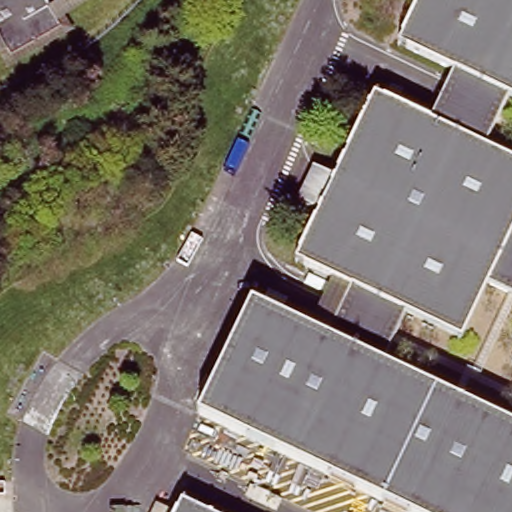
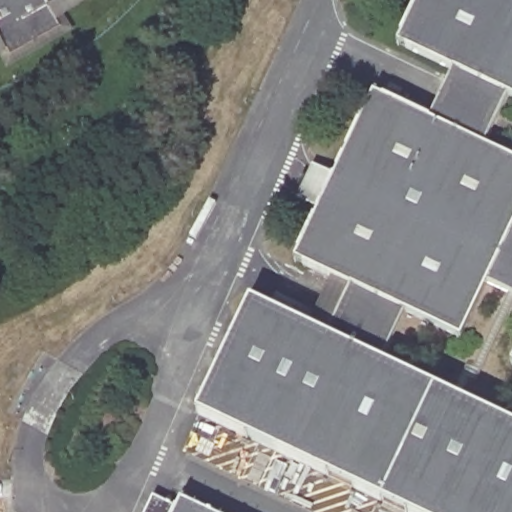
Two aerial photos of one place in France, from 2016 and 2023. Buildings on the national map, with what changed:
unchanged [(58,0),(47,8),(59,30),(11,61),(6,55),(0,58),(0,0),(58,0)]
unchanged [(249,301),(327,337),(349,286),(294,261),(371,96),(428,125),(453,69),(397,46),(418,0),(512,0),(512,95),(506,92),(479,146),(512,162),(512,224),(510,230),(512,231),(512,297),(484,283),(457,337),(403,311),(380,361),(512,423),(512,512),(408,512),(197,410),(249,301)]
unchanged [(512,360),(512,366),(510,365),(512,360)]
unchanged [(183,504),(199,512),(179,512),(183,504)]

